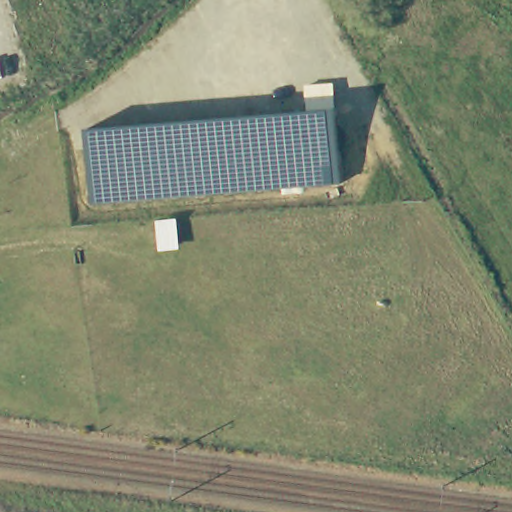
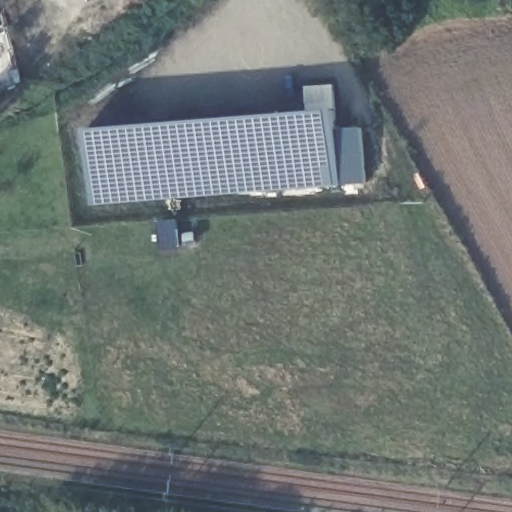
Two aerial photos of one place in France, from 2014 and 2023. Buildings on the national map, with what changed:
unchanged [(336,109),(341,184),(93,206),(87,129),(336,109)]

